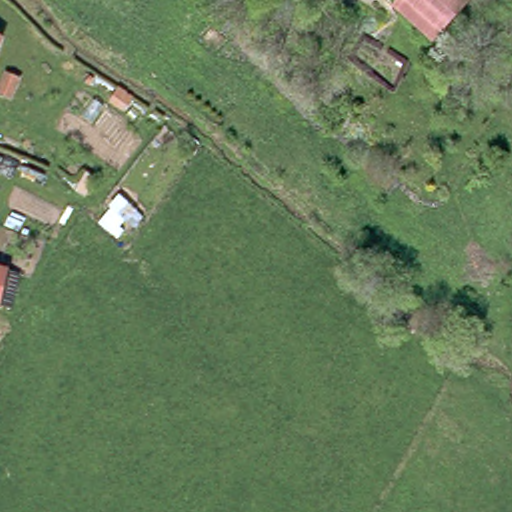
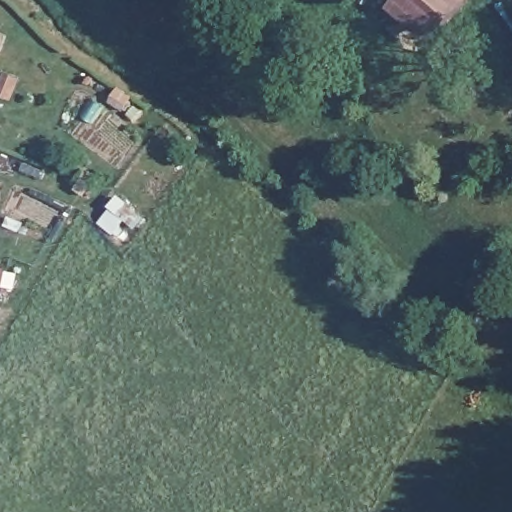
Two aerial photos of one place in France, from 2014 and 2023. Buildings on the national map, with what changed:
unchanged [(429,31),(400,2),(402,0),(469,0),(435,36),(429,31)]
unchanged [(0,283),(0,266),(4,267),(0,283)]

